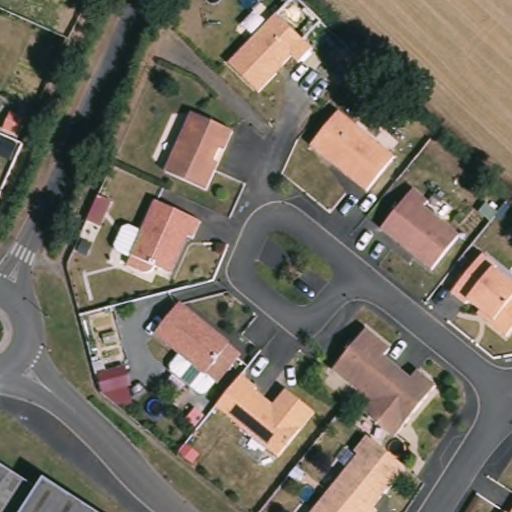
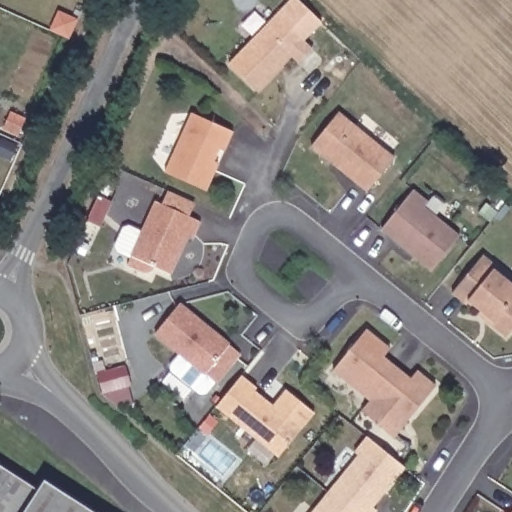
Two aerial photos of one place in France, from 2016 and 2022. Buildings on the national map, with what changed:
unchanged [(256,90),(227,61),(274,12),(310,46),(297,60),(290,54),(273,70),(275,71),(256,90)]
unchanged [(214,168),(204,188),(164,169),(190,110),(231,129),(222,148),(217,146),(212,159),(217,161),(214,168)]
unchanged [(308,148),(336,114),(392,159),(364,193),(336,169),(330,165),(308,148)]
unchanged [(430,271),(379,230),(411,191),(426,203),(422,208),(457,237),(430,271)]
unchanged [(122,267),(150,203),(195,223),(187,240),(182,238),(165,275),(150,268),(149,269),(148,270),(147,271),(147,272),(146,273),(145,273),(144,274),(142,274),(141,274),(140,274),(139,274),(138,274),(137,274),(136,273),(122,267)]
unchanged [(474,312),(462,302),(459,305),(445,294),(476,255),(490,267),(487,270),(512,290),(512,292),(509,297),(512,299),(512,322),(499,338),(483,325),(472,315),(474,312)]
unchanged [(214,384),(153,334),(177,305),(238,354),(214,384)]
unchanged [(410,372),(429,387),(387,438),(355,412),(363,401),(326,371),(359,330),(377,344),(383,349),(377,357),(403,379),(410,372)]
unchanged [(130,363),(135,381),(107,389),(102,371),(130,363)]
unchanged [(307,414),(272,458),(210,408),(235,377),(250,389),(248,392),(257,400),(267,408),(280,391),(307,414)]
unchanged [(366,508),(370,511),(369,512),(307,512),(352,456),(348,453),(361,438),(398,468),(366,508)]
unchanged [(0,467),(33,488),(39,477),(94,512),(0,512),(0,467)]
unchanged [(512,502),(512,512),(506,512),(512,502)]

